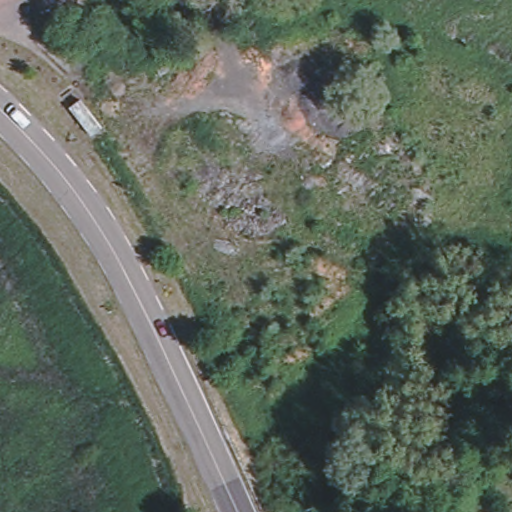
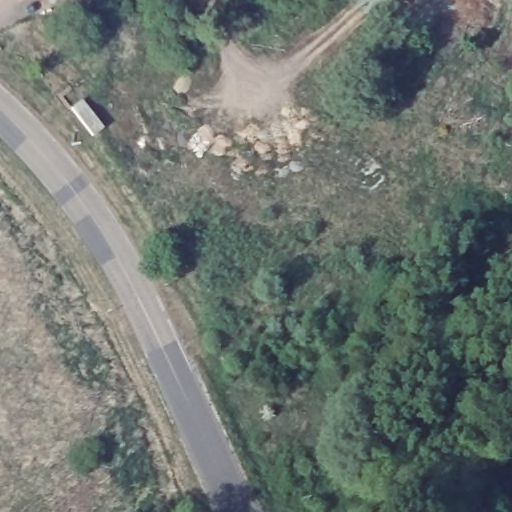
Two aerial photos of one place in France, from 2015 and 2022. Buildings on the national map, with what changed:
unchanged [(93,136),(71,108),(81,101),(103,128),(93,136)]

